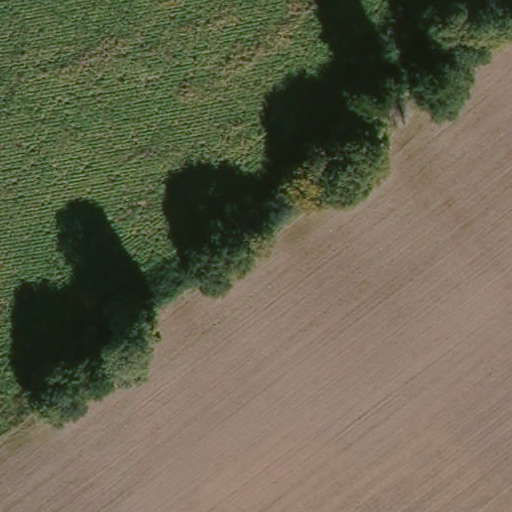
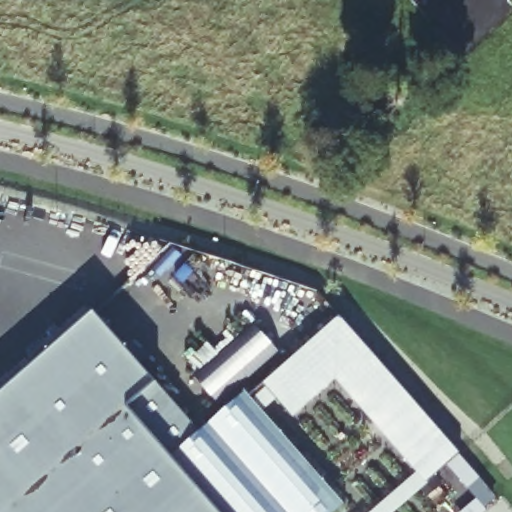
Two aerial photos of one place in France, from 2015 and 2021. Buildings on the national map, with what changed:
new [(157,383),(201,433),(246,392),(347,505),(339,512),(0,512),(0,397),(97,314),(157,383)]
new [(341,317),(461,454),(427,483),(337,380),(294,416),(266,384),(341,317)]

